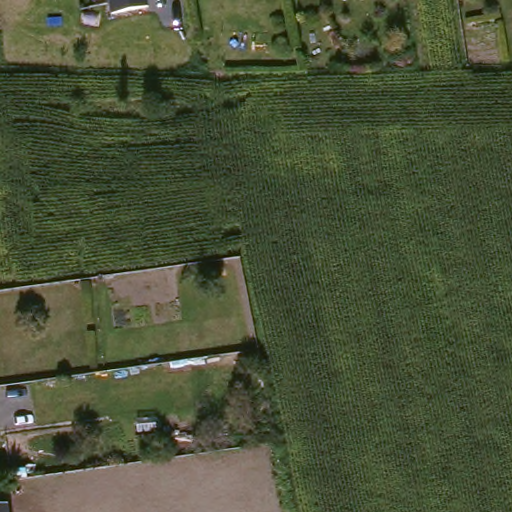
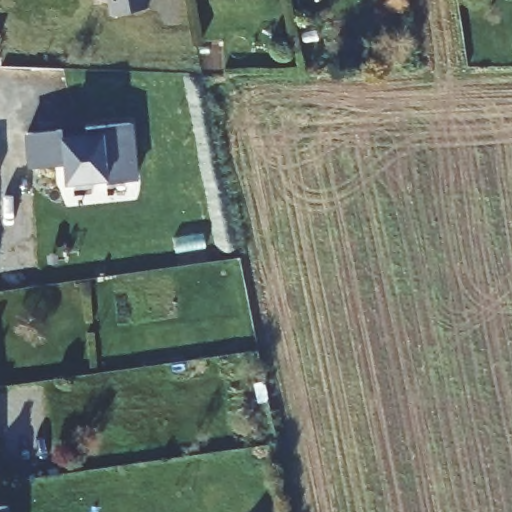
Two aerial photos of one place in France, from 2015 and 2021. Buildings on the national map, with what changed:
unchanged [(114,11),(111,0),(150,0),(151,3),(114,11)]
new [(70,140),(94,140),(139,139),(139,197),(108,198),(108,193),(68,193),(68,175),(35,175),(35,140),(70,140)]

